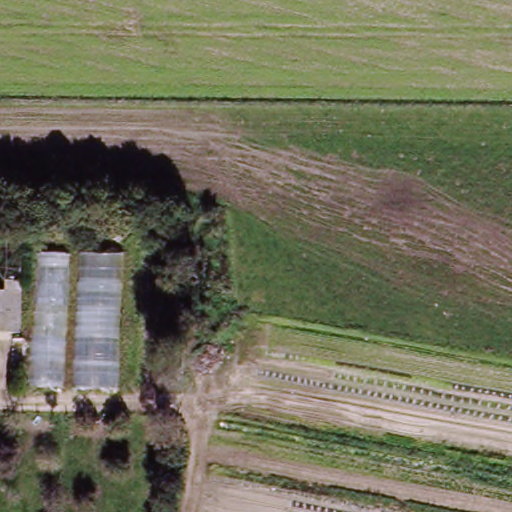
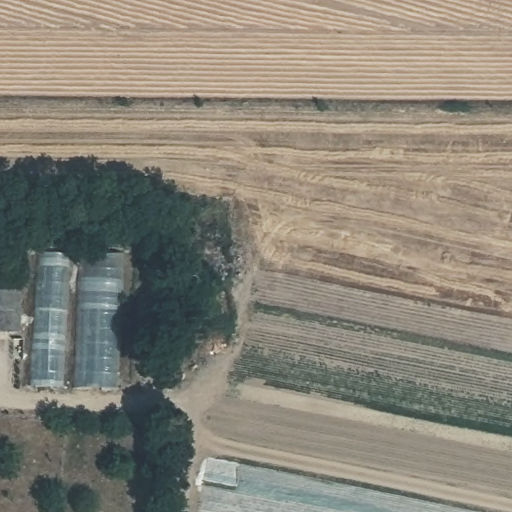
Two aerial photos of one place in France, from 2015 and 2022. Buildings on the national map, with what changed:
unchanged [(70,259),(64,392),(29,390),(35,257),(70,259)]
unchanged [(125,260),(119,392),(73,390),(78,257),(125,260)]
unchanged [(9,286),(24,286),(24,341),(0,341),(0,302),(9,302),(9,286)]

